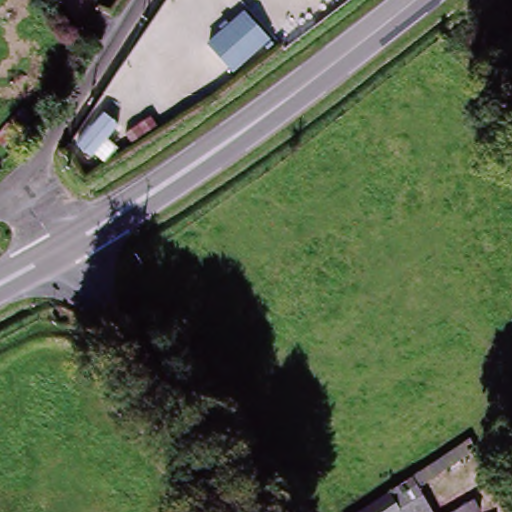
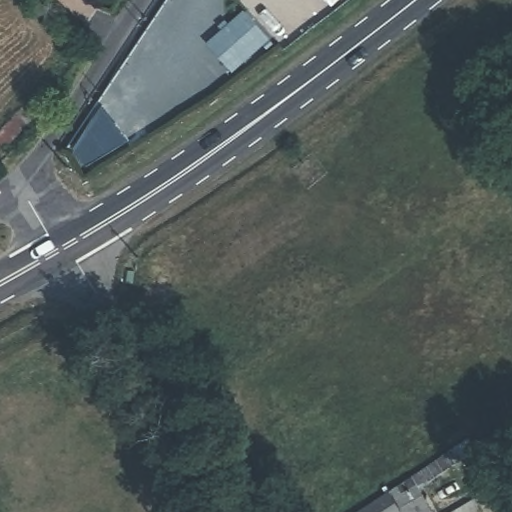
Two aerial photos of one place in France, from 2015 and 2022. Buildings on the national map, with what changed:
unchanged [(338,0),(340,0),(339,1),(338,0)]
unchanged [(268,43),(233,73),(205,44),(242,11),(268,43)]
unchanged [(106,111),(123,124),(98,155),(82,144),(106,111)]
unchanged [(393,492),(417,482),(432,512),(405,512),(393,492)]

